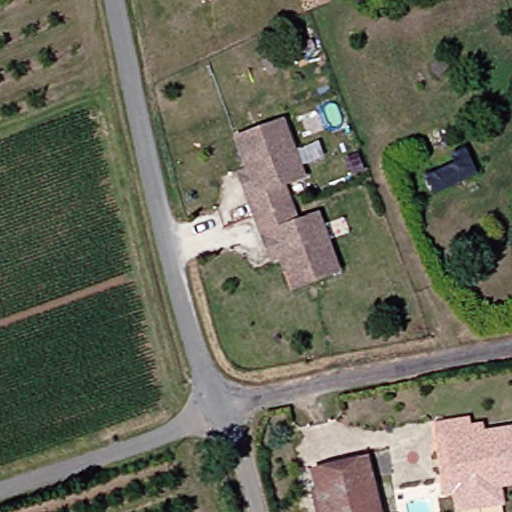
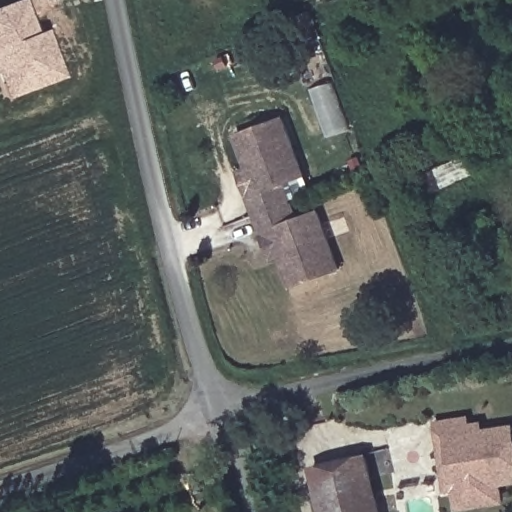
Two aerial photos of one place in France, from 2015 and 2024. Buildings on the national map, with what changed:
new [(19,0),(24,0),(37,33),(47,29),(65,78),(8,98),(0,78),(0,7),(19,0)]
demolished [(186,14),(186,0),(216,0),(210,4),(186,14)]
unchanged [(261,233),(255,215),(249,196),(243,172),(253,169),(245,137),(291,121),(308,178),(286,185),(292,203),(298,222),(319,215),(336,272),(288,287),(279,255),(269,259),(261,233)]
unchanged [(437,434),(468,427),(469,432),(482,429),(484,434),(512,429),(512,487),(510,488),(512,504),(480,512),(469,512),(466,497),(449,499),(440,446),(437,434)]
unchanged [(319,469),(369,459),(380,512),(327,512),(319,469)]

